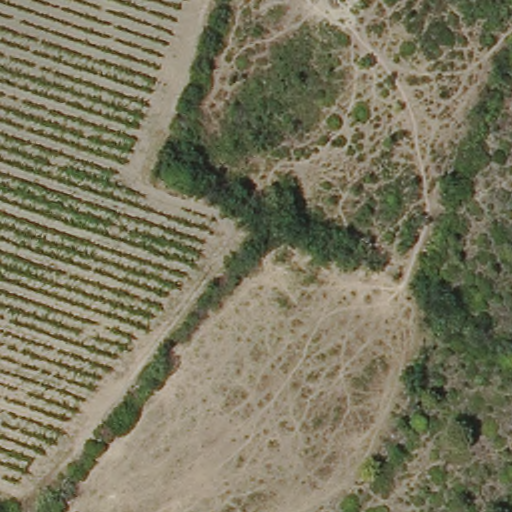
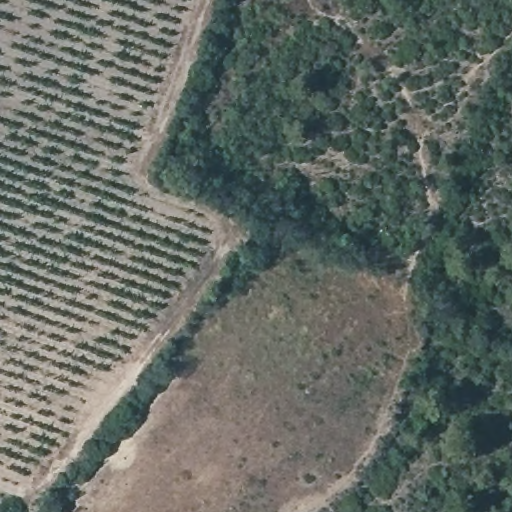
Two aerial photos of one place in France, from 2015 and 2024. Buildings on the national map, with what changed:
[]

